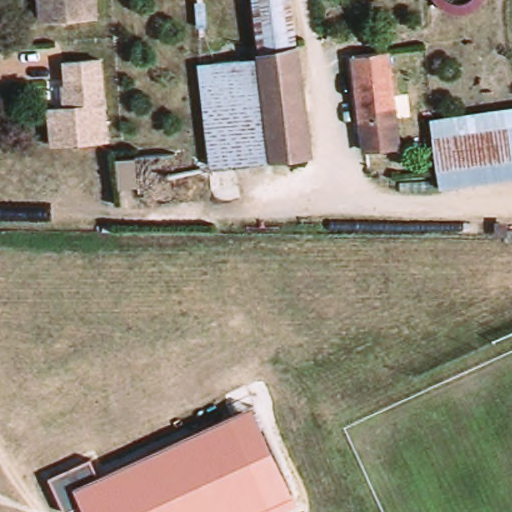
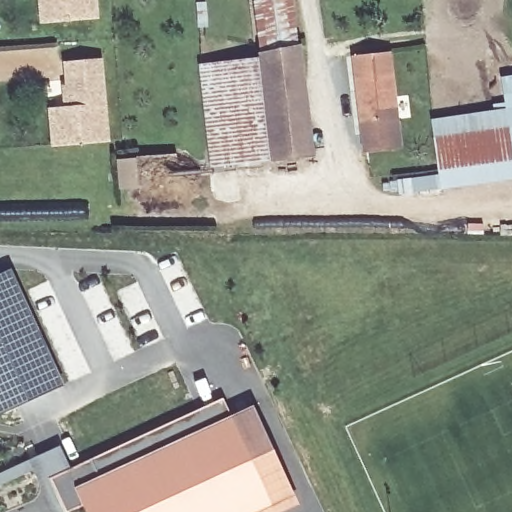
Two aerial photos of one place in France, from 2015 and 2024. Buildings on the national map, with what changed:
unchanged [(40,0),(97,0),(98,21),(42,25),(40,0)]
unchanged [(252,0),(289,0),(296,47),(257,53),(252,0)]
unchanged [(311,159),(272,163),(259,57),(257,53),(296,47),(297,49),(311,159)]
unchanged [(392,56),(405,151),(373,155),(360,61),(392,56)]
unchanged [(272,163),(213,169),(197,65),(259,57),(272,163)]
unchanged [(113,144),(57,149),(54,112),(73,111),(70,66),(107,65),(110,108),(113,144)]
unchanged [(512,132),(512,183),(445,194),(437,143),(512,132)]
unchanged [(140,156),(142,187),(120,190),(117,159),(140,156)]
new [(65,387),(0,417),(0,278),(12,272),(65,387)]
unchanged [(282,512),(86,512),(83,505),(69,512),(66,512),(52,477),(91,460),(97,475),(255,405),(298,505),(282,512)]

